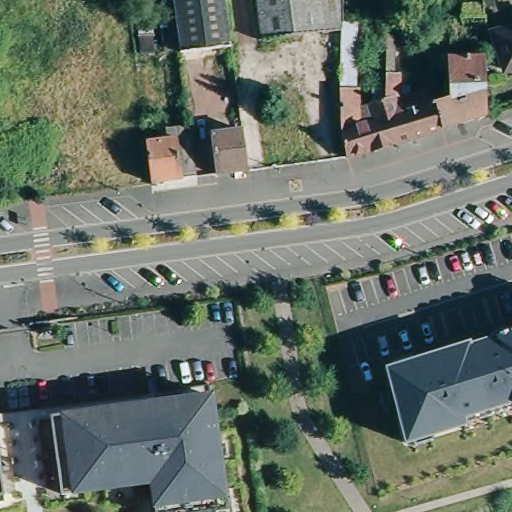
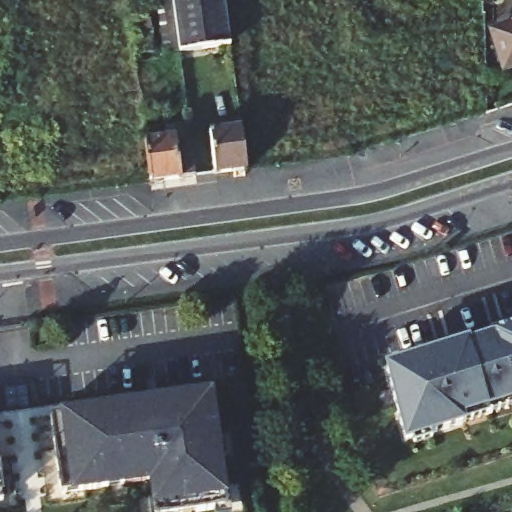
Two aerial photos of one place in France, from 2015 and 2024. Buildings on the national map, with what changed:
unchanged [(229,45),(177,52),(170,0),(223,0),(229,45)]
demolished [(261,43),(255,0),(317,0),(323,35),(261,43)]
demolished [(317,0),(338,0),(338,26),(338,27),(338,33),(323,35),(317,0)]
unchanged [(512,25),(512,64),(503,67),(492,32),(512,25)]
demolished [(349,160),(346,161),(343,152),(339,134),(338,120),(337,92),(338,40),(338,33),(338,27),(338,26),(354,26),(353,92),(358,92),(358,111),(373,107),(371,101),(377,99),(379,104),(384,120),(393,146),(349,160)]
demolished [(393,146),(384,120),(379,104),(382,103),(383,52),(392,52),(391,79),(398,79),(398,100),(424,92),(429,107),(433,105),(441,131),(393,146)]
demolished [(485,117),(441,131),(433,105),(447,101),(446,60),(484,59),(485,117)]
unchanged [(143,131),(173,127),(172,117),(187,116),(194,166),(148,172),(143,131)]
unchanged [(246,169),(214,174),(208,132),(241,129),(246,169)]
unchanged [(417,358),(466,343),(466,346),(491,337),(490,336),(512,329),(512,407),(462,422),(462,423),(404,441),(384,368),(417,358)]
unchanged [(224,507),(196,512),(155,512),(151,481),(133,483),(60,492),(50,416),(209,394),(224,507)]

